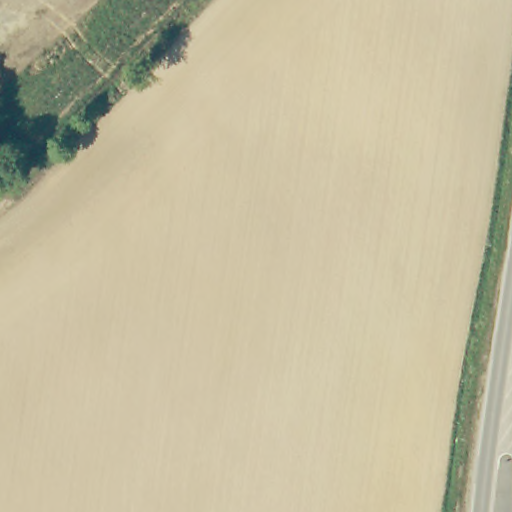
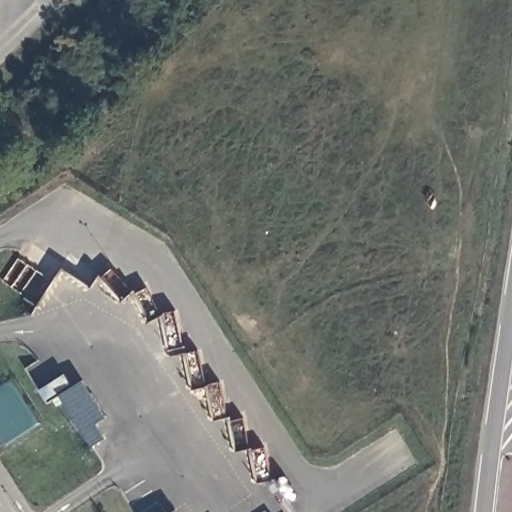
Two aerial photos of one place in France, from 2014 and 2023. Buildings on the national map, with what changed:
new [(83,379),(107,417),(98,422),(107,436),(93,445),(61,393),(83,379)]
new [(176,512),(169,512),(174,509),(176,512)]

